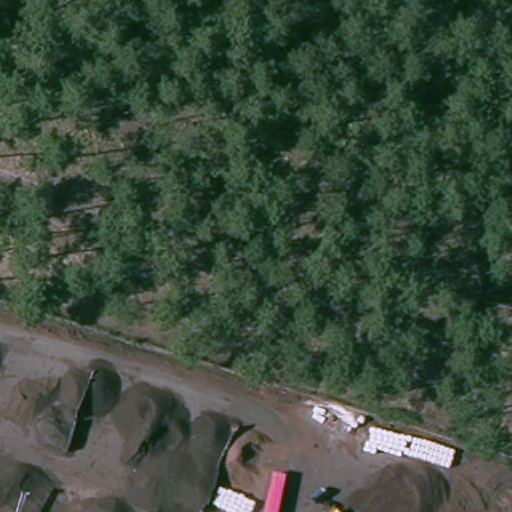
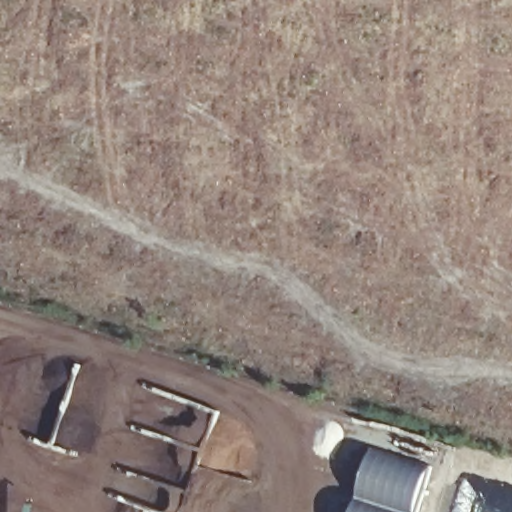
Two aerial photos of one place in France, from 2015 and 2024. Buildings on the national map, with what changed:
new [(372,449),(431,468),(416,512),(352,512),(372,449)]

